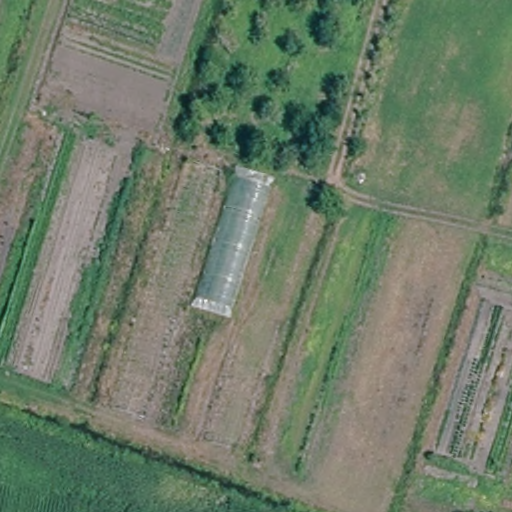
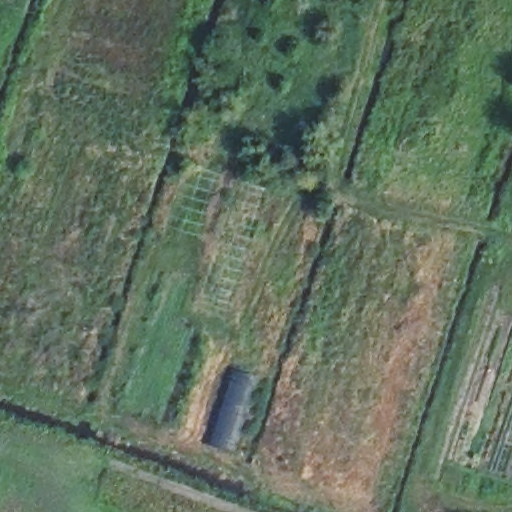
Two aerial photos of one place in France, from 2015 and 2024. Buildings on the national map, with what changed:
new [(230,320),(192,308),(239,167),(273,179),(230,320)]

